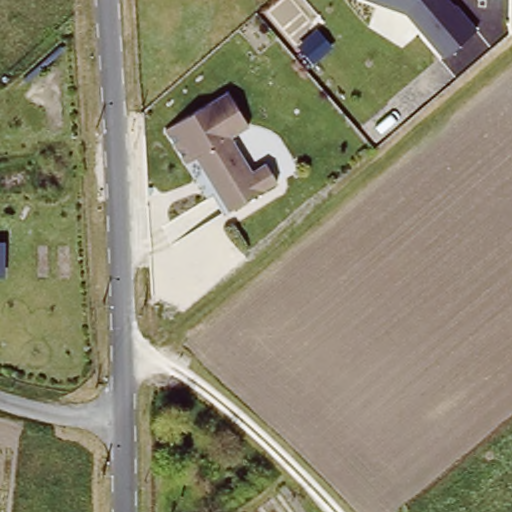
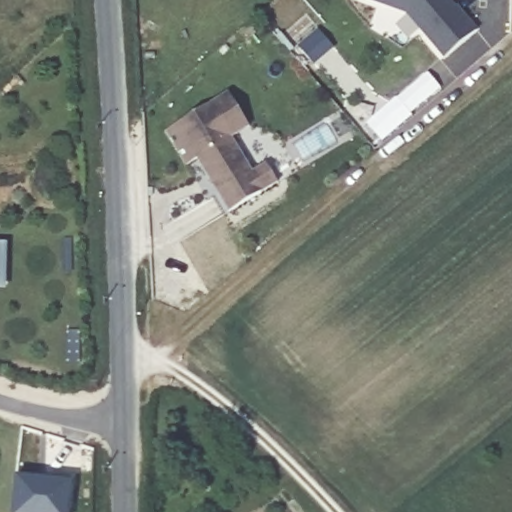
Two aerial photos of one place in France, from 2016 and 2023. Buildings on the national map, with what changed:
unchanged [(442,58),(406,13),(366,0),(452,0),(477,30),(442,58)]
unchanged [(228,89),(250,126),(232,138),(252,173),(266,163),(278,184),(229,214),(196,158),(182,170),(162,131),(228,89)]
unchanged [(3,279),(0,278),(0,245),(4,245),(3,279)]
new [(17,474),(55,481),(55,478),(73,481),(68,512),(11,512),(17,474)]

